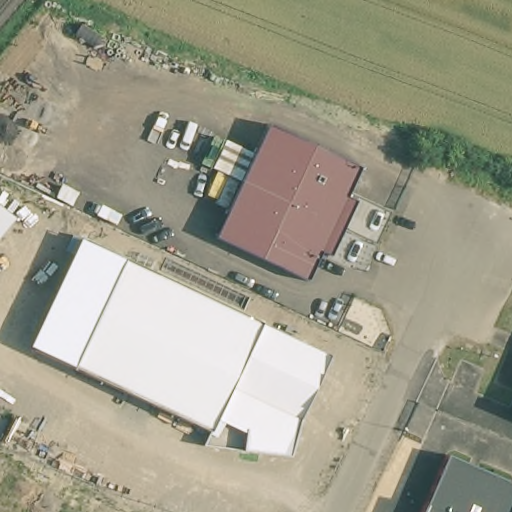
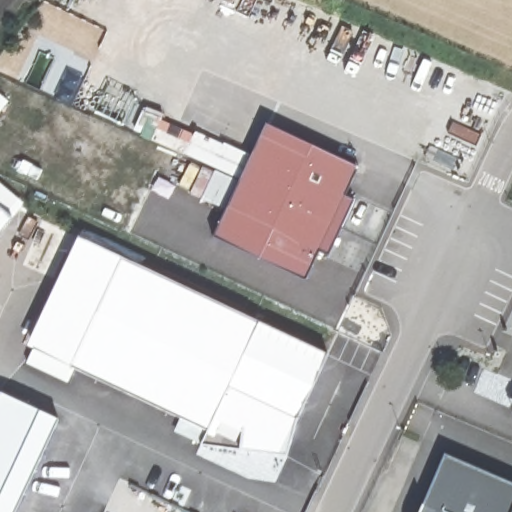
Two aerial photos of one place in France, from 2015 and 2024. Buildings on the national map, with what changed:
unchanged [(363,167),(350,196),(359,200),(333,256),(324,252),(310,281),(217,237),(270,124),(363,167)]
unchanged [(0,209),(13,220),(0,236),(0,209)]
unchanged [(298,420),(287,456),(242,451),(202,445),(209,431),(28,346),(79,238),(327,356),(298,420)]
new [(0,512),(0,394),(0,393),(59,420),(16,512),(0,512)]
unchanged [(422,512),(445,455),(512,484),(512,512),(422,512)]

